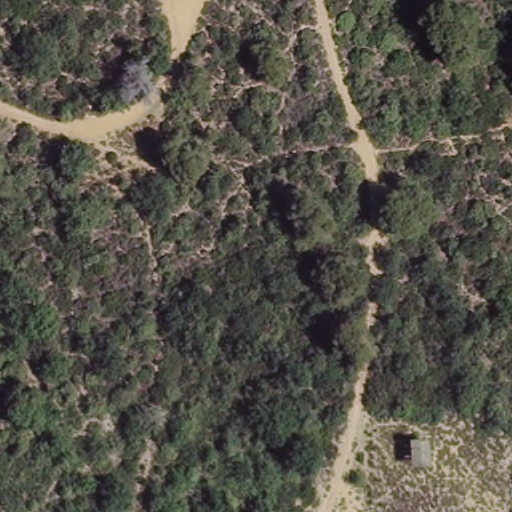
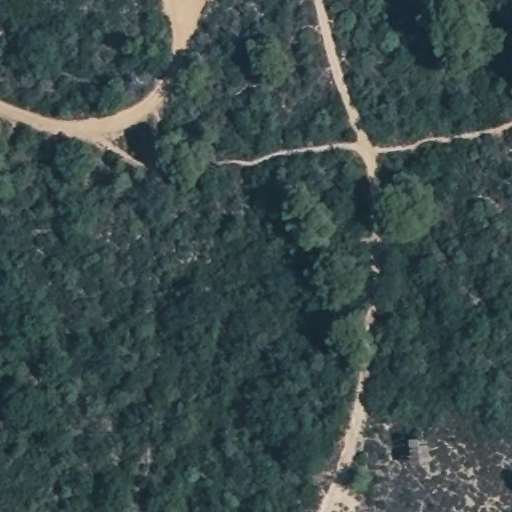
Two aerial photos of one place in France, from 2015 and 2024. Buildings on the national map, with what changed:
unchanged [(428,443),(429,473),(409,473),(408,443),(428,443)]

